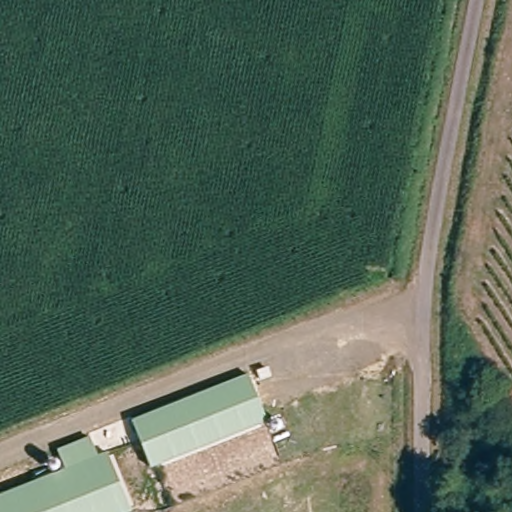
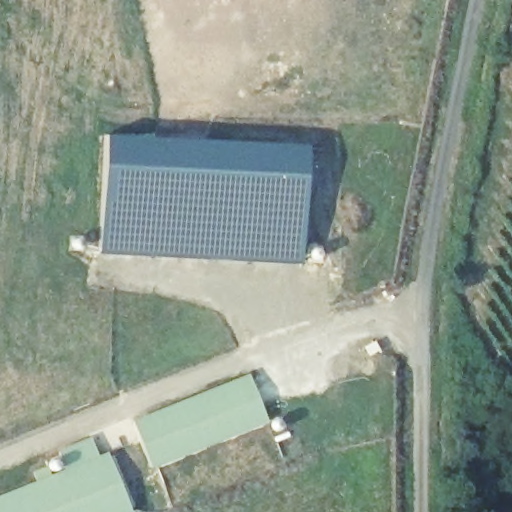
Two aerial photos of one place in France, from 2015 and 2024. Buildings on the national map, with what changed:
new [(106,136),(308,147),(302,260),(101,251),(106,136)]
unchanged [(267,421),(150,467),(131,419),(248,374),(267,421)]
unchanged [(65,468),(57,449),(89,437),(97,455),(108,451),(132,511),(130,512),(0,512),(0,494),(65,468)]

